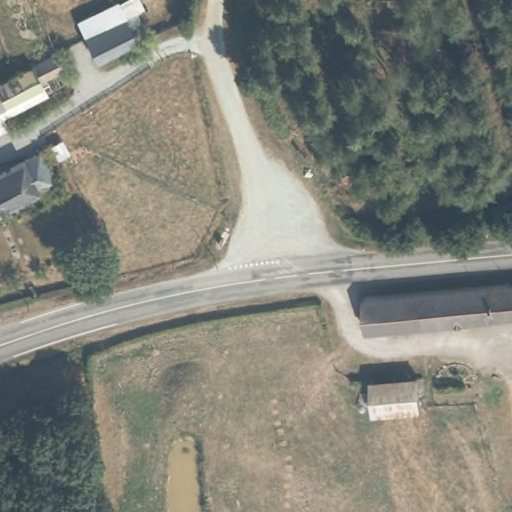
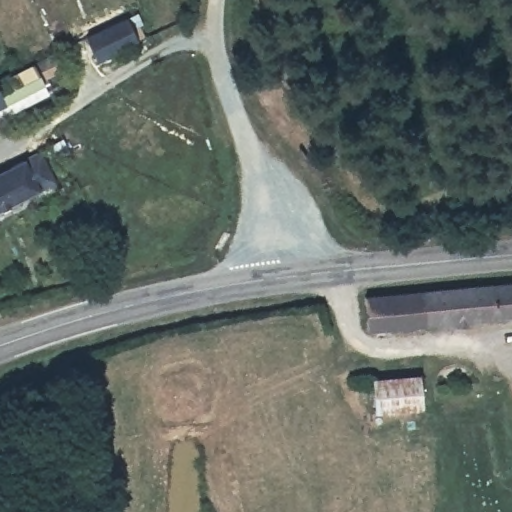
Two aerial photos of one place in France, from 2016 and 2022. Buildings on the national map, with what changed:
unchanged [(119,14),(132,36),(93,55),(81,32),(119,14)]
unchanged [(16,76),(35,66),(57,55),(65,69),(42,82),(45,86),(5,106),(0,108),(0,84),(16,76)]
unchanged [(0,211),(0,174),(39,155),(41,154),(55,183),(52,184),(0,211)]
unchanged [(512,321),(358,338),(356,300),(512,283),(512,321)]
unchanged [(415,373),(417,406),(374,407),(371,377),(415,373)]

